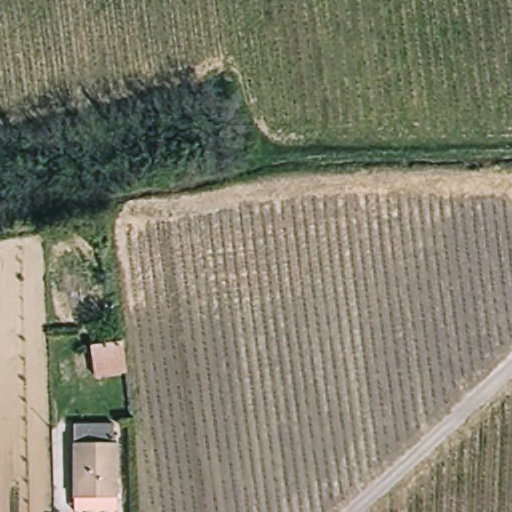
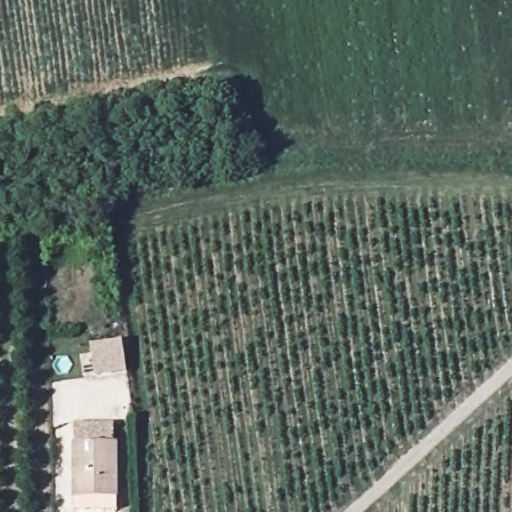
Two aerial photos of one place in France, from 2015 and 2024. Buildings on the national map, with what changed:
unchanged [(127,345),(131,376),(99,381),(95,350),(127,345)]
unchanged [(77,512),(77,500),(77,426),(117,426),(117,445),(119,445),(119,500),(119,512),(77,512)]

